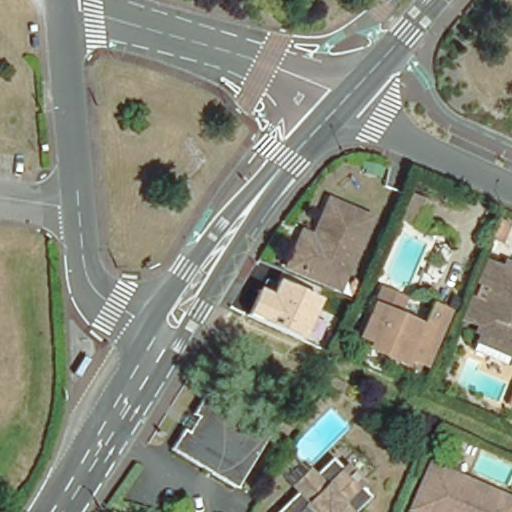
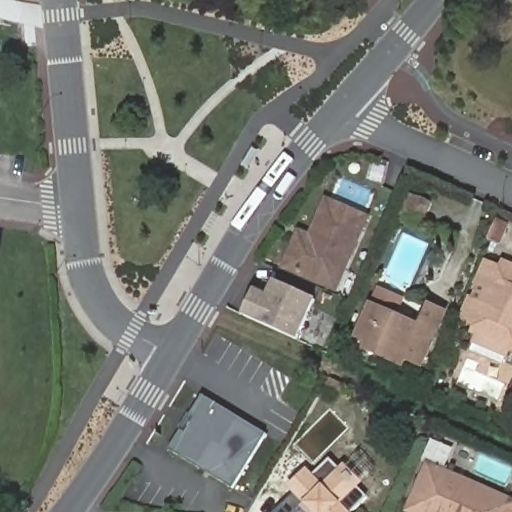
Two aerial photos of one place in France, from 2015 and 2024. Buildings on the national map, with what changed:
unchanged [(315,277),(280,261),(293,232),(304,237),(307,230),(325,195),(364,213),(334,280),(331,285),(315,277)]
unchanged [(476,337),(476,336),(472,335),(474,330),(461,325),(471,303),(481,308),(487,294),(477,290),(487,267),(500,273),(502,267),(512,272),(512,352),(508,350),(505,356),(473,343),(476,337)]
unchanged [(255,289),(268,294),(275,280),(317,300),(308,320),(324,327),(314,347),(300,340),(244,313),(255,289)]
unchanged [(362,336),(351,332),(366,301),(373,285),(399,296),(391,312),(415,322),(425,301),(441,309),(418,362),(401,355),(398,360),(379,352),(360,343),(362,336)]
unchanged [(265,430),(232,485),(170,446),(201,392),(265,430)]
unchanged [(430,462),(512,499),(512,512),(416,512),(408,508),(410,505),(430,462)]
unchanged [(296,489),(313,475),(318,481),(339,465),(348,476),(350,475),(355,481),(353,483),(367,501),(354,512),(279,512),(301,495),(296,489)]

